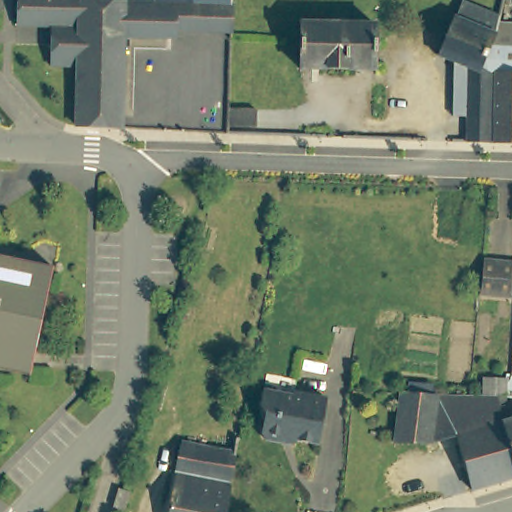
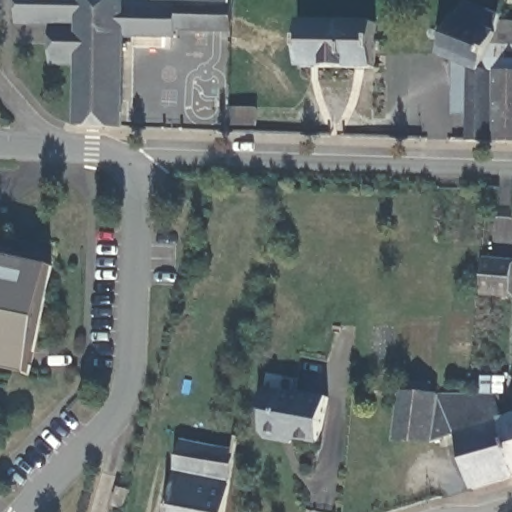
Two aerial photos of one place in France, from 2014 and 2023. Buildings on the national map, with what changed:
unchanged [(17,25),(17,0),(80,0),(79,0),(77,67),(48,65),(48,45),(49,26),(17,25)]
unchanged [(80,0),(229,6),(229,32),(177,31),(177,39),(123,38),(120,128),(76,125),(77,67),(79,0),(80,0)]
unchanged [(226,1),(189,0),(226,0),(226,1)]
unchanged [(457,16),(464,0),(501,16),(496,33),(483,66),(481,70),(493,75),(492,144),(466,142),(467,117),(454,116),(456,61),(440,55),(456,15),(457,16)]
unchanged [(376,25),(375,70),(300,68),(302,23),(376,25)]
unchanged [(494,144),(495,71),(493,71),(494,45),(512,47),(512,144),(494,144)]
unchanged [(29,376),(0,370),(0,257),(52,268),(29,376)]
unchanged [(512,263),(512,297),(484,295),(486,260),(512,263)]
unchanged [(318,445),(285,440),(278,442),(264,440),(260,432),(263,415),(258,409),(261,391),(264,374),(294,378),(292,392),(325,398),(318,441),(318,445)]
unchanged [(401,394),(429,395),(434,395),(471,395),(500,396),(505,396),(507,396),(505,405),(498,406),(503,422),(512,420),(512,479),(503,482),(471,491),(456,436),(431,444),(395,441),(401,394)]
unchanged [(189,444),(190,438),(196,440),(195,445),(233,452),(223,512),(169,512),(182,442),(189,444)]
unchanged [(119,483),(129,486),(124,503),(114,500),(119,483)]

